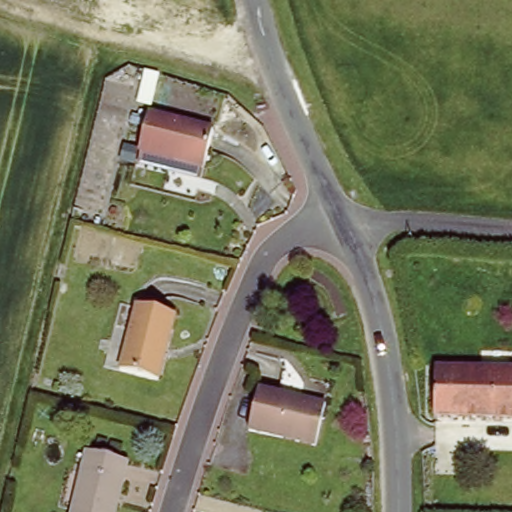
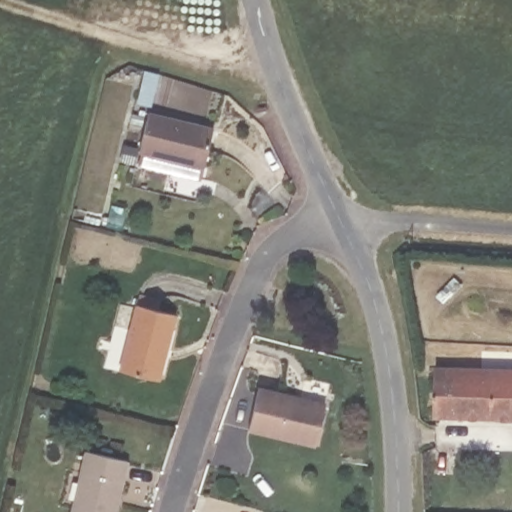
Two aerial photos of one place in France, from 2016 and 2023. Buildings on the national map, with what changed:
unchanged [(145,115),(207,131),(195,181),(167,174),(170,159),(136,150),(145,115)]
unchanged [(134,301),(168,310),(152,375),(118,366),(134,301)]
unchanged [(425,369),(467,371),(467,362),(509,363),(508,372),(512,372),(512,424),(420,420),(425,369)]
unchanged [(263,391),(327,412),(312,451),(249,430),(263,391)]
unchanged [(85,456),(128,466),(116,512),(71,512),(85,456)]

